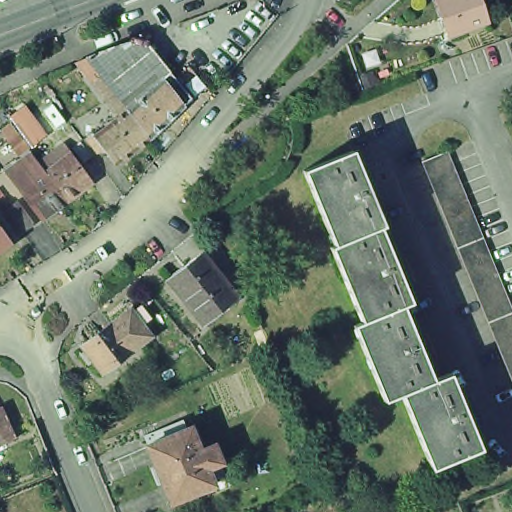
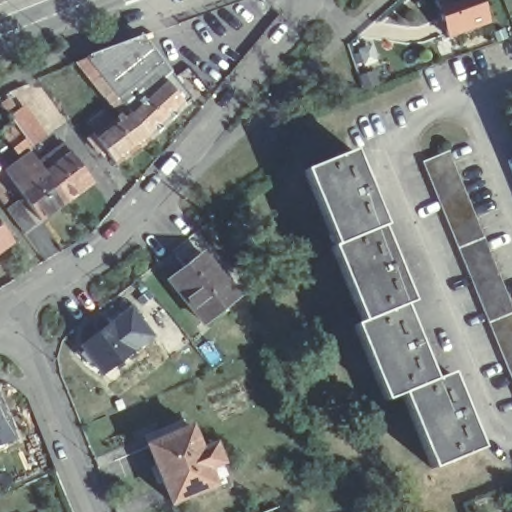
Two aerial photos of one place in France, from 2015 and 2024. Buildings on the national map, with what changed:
unchanged [(451,0),(478,0),(488,26),(447,41),(435,6),(451,0)]
unchanged [(88,139),(93,135),(95,136),(121,116),(115,108),(113,109),(104,98),(78,62),(88,57),(87,56),(143,36),(170,70),(192,98),(150,139),(115,164),(103,149),(99,152),(92,144),(88,139)]
unchanged [(20,122),(10,110),(34,92),(43,105),(55,121),(30,139),(18,123),(20,122)]
unchanged [(17,149),(8,136),(10,135),(2,126),(11,120),(17,129),(18,128),(28,142),(17,149)]
unchanged [(92,176),(68,195),(66,196),(40,215),(20,187),(6,168),(27,152),(32,159),(37,155),(38,156),(39,155),(48,149),(62,139),(70,150),(71,148),(92,176)]
unchanged [(304,169),(354,150),(385,225),(381,226),(335,245),(304,169)]
unchanged [(448,150),(512,306),(512,381),(421,161),(448,150)]
unchanged [(17,195),(35,219),(23,228),(5,204),(17,195)]
unchanged [(11,242),(0,251),(0,226),(11,242)]
unchanged [(411,301),(403,305),(361,321),(331,246),(335,245),(381,226),(411,301)]
unchanged [(168,279),(201,253),(237,298),(220,312),(213,303),(197,315),(168,279)]
unchanged [(433,380),(400,393),(384,400),(353,325),(361,321),(403,305),(433,380)]
unchanged [(92,360),(88,363),(80,355),(85,352),(81,345),(112,322),(112,323),(127,312),(136,324),(140,321),(151,336),(133,350),(133,351),(102,374),(92,360)]
unchanged [(450,373),(481,448),(431,469),(400,393),(433,380),(450,373)]
unchanged [(2,413),(6,420),(14,438),(2,443),(0,445),(0,414),(2,413)]
unchanged [(147,445),(190,428),(200,451),(214,445),(221,462),(207,468),(214,485),(170,502),(147,445)]

